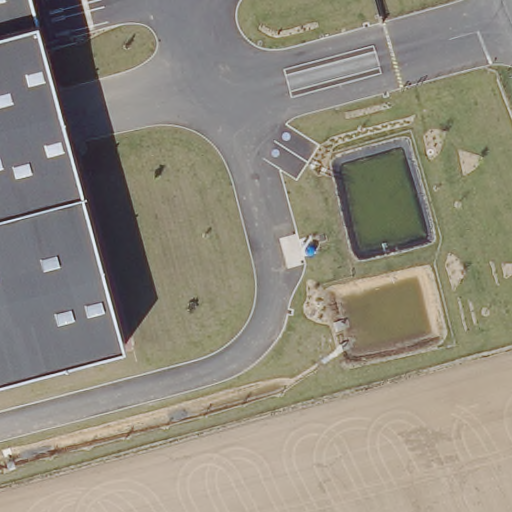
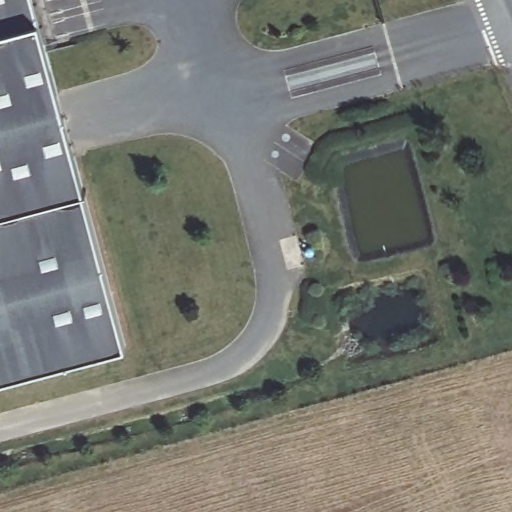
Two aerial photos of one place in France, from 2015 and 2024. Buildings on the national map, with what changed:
unchanged [(126,347),(0,381),(0,0),(32,0),(126,347)]

